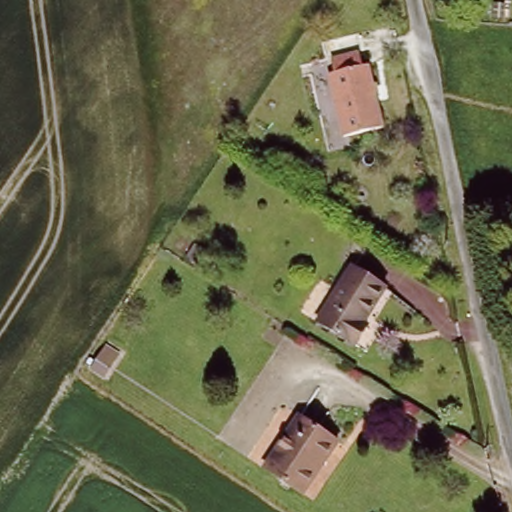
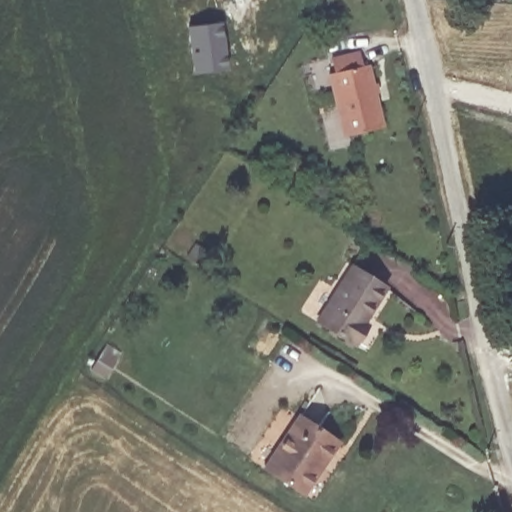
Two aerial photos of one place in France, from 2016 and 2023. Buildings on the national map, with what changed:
new [(222,25),(229,72),(197,76),(190,29),(222,25)]
unchanged [(386,126),(348,135),(334,75),(339,74),(335,58),(362,52),(366,67),(374,65),(386,126)]
unchanged [(381,280),(358,316),(362,318),(352,335),(314,313),(348,260),(381,280)]
unchanged [(301,487),(263,464),(297,413),(333,437),(301,487)]

